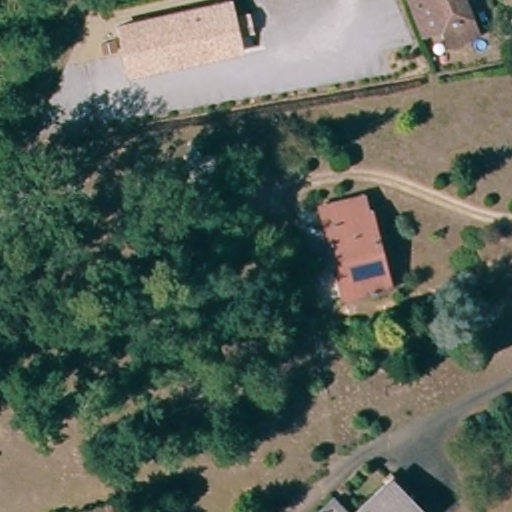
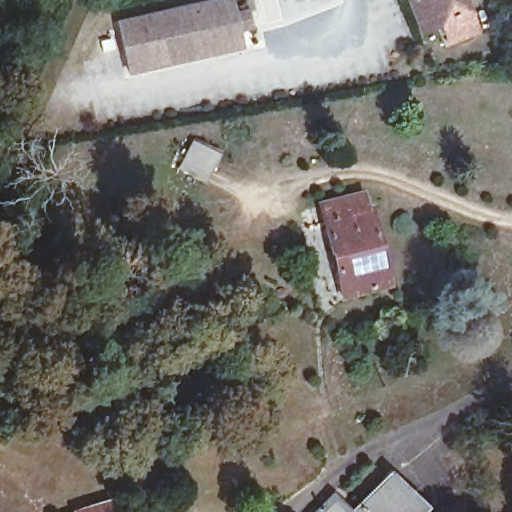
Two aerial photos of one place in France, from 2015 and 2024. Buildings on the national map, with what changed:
unchanged [(259,22),(247,24),(250,42),(141,65),(131,17),(214,0),(241,0),(243,9),(256,7),(259,22)]
unchanged [(470,0),(481,25),(454,37),(445,16),(422,25),(411,0),(470,0)]
unchanged [(165,163),(179,136),(206,152),(192,178),(165,163)]
unchanged [(388,281),(351,292),(325,197),(368,186),(385,245),(394,279),(388,281)]
unchanged [(116,422),(110,442),(71,427),(77,408),(116,422)]
unchanged [(342,492),(360,508),(397,472),(430,505),(423,512),(323,512),(342,492)]
unchanged [(116,490),(124,512),(62,512),(116,490)]

